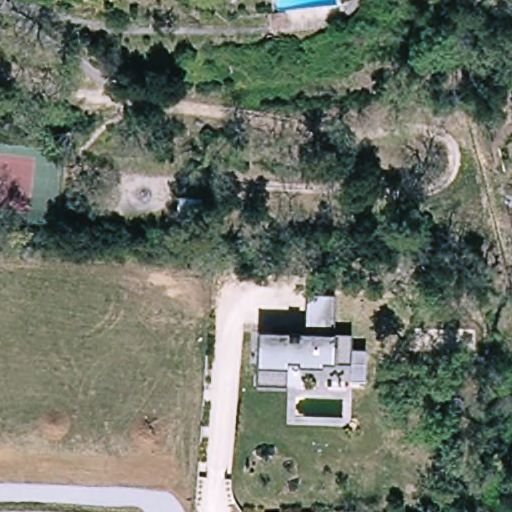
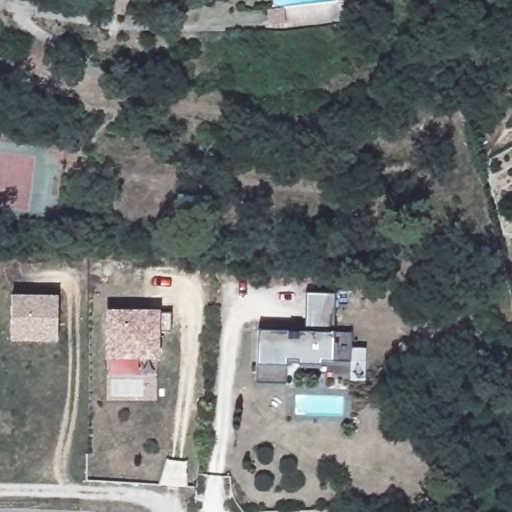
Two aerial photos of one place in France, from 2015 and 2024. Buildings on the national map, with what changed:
unchanged [(318,330),(320,295),(320,291),(350,292),(348,332),(365,332),(364,362),(343,361),(300,358),(299,382),(269,381),(272,327),(318,330)]
new [(12,296),(58,297),(58,340),(12,340),(12,296)]
new [(120,308),(183,310),(183,329),(170,328),(169,355),(151,355),(151,350),(138,350),(138,355),(119,354),(120,308)]

